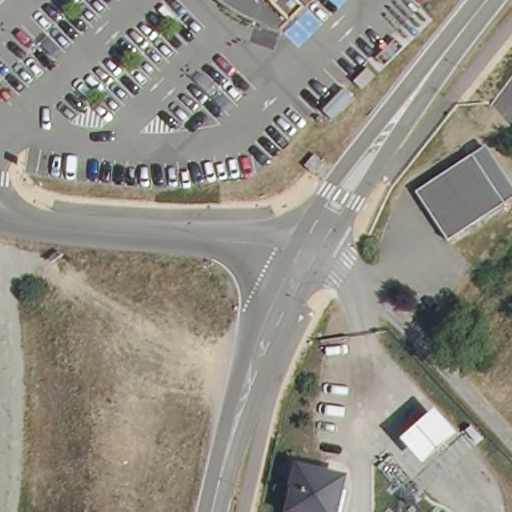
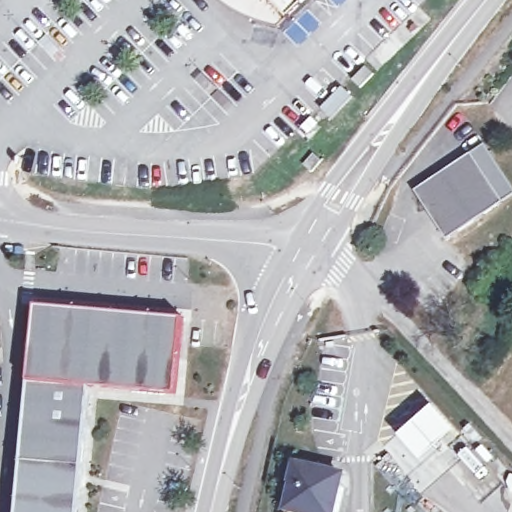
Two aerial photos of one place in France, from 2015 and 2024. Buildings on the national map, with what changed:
unchanged [(295,10),(275,27),(243,17),(217,0),(305,0),(295,10)]
unchanged [(50,35),(64,50),(55,58),(41,43),(50,35)]
unchanged [(219,87),(210,95),(195,80),(204,72),(219,87)]
unchanged [(415,191),(485,146),(512,187),(512,198),(448,240),(415,191)]
unchanged [(322,161),(313,171),(305,164),(314,154),(322,161)]
new [(175,394),(87,386),(76,512),(18,512),(30,379),(35,305),(182,317),(175,394)]
unchanged [(425,461),(402,437),(435,407),(456,431),(425,461)]
unchanged [(334,512),(289,512),(302,457),(345,467),(334,512)]
unchanged [(347,490),(343,512),(334,512),(340,488),(347,490)]

